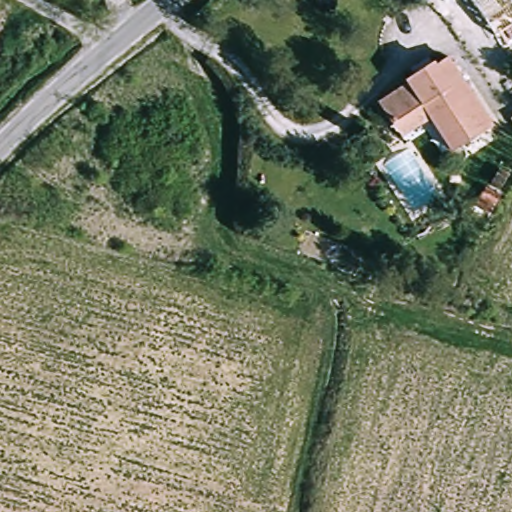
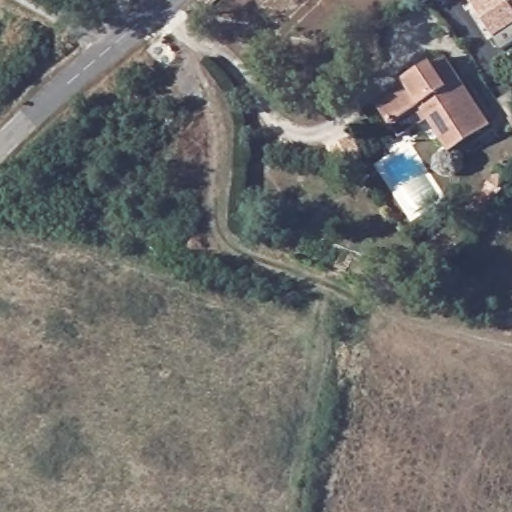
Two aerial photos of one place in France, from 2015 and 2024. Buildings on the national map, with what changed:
demolished [(512,12),(512,29),(493,42),(466,0),(504,0),(512,12)]
new [(501,50),(493,37),(470,0),(512,0),(512,43),(501,50)]
unchanged [(385,127),(371,105),(407,82),(404,77),(433,60),(436,65),(448,56),(492,120),(453,146),(434,117),(396,142),(385,127)]

